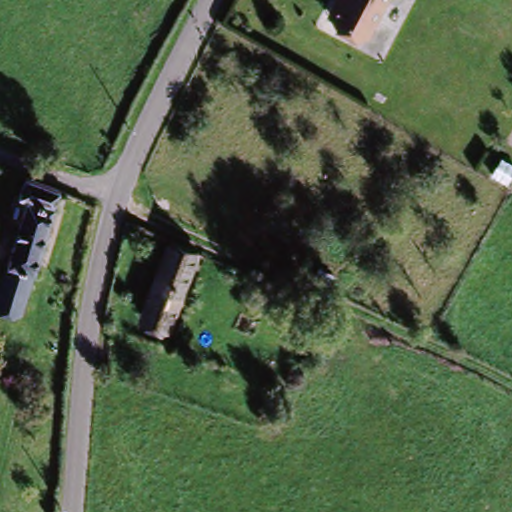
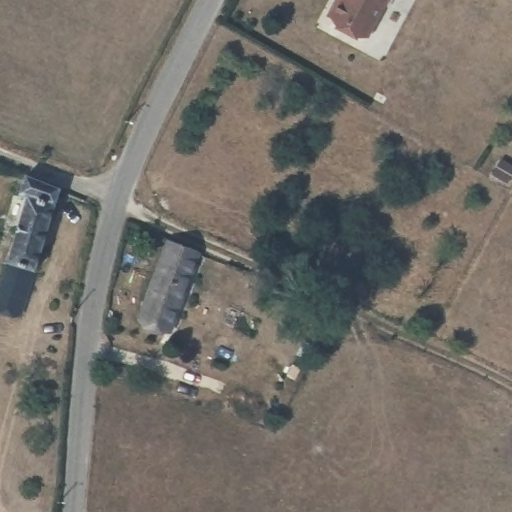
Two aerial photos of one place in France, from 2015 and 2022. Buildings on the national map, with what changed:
unchanged [(369,38),(334,19),(331,17),(340,0),(390,0),(369,38)]
unchanged [(61,198),(12,321),(0,316),(0,279),(28,206),(20,202),(28,185),(61,198)]
unchanged [(161,338),(135,326),(168,254),(193,266),(193,267),(161,338)]
unchanged [(301,316),(294,332),(274,322),(281,307),(301,316)]

